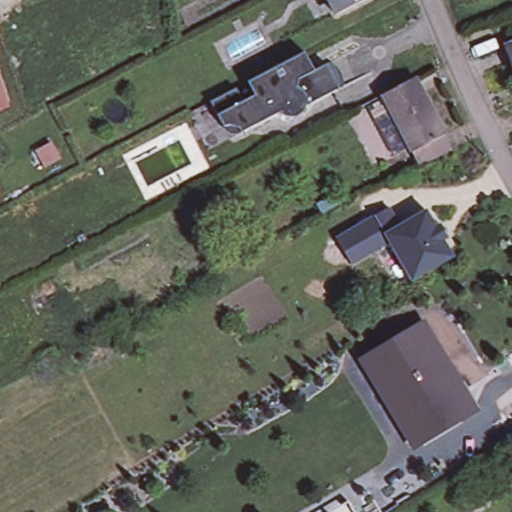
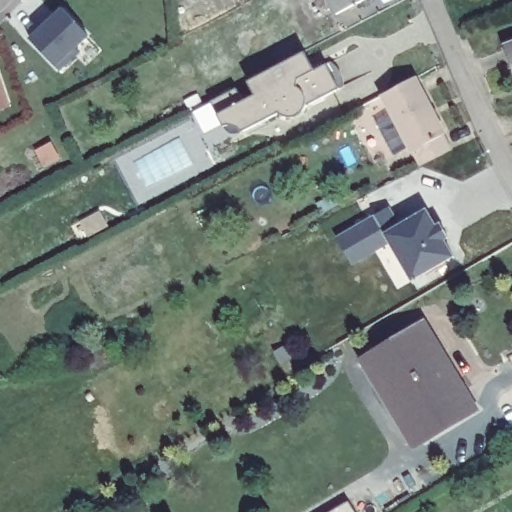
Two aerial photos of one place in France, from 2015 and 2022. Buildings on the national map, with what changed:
unchanged [(341,7),(338,0),(355,0),(341,7)]
new [(55,66),(28,38),(62,7),(89,37),(75,49),(79,53),(59,72),(55,66)]
unchanged [(512,44),(512,54),(509,46),(512,44)]
unchanged [(304,111),(298,120),(293,122),(284,122),(275,119),(240,138),(238,135),(237,132),(233,130),(226,127),(221,130),(209,105),(235,92),(242,106),(253,100),(246,86),(289,64),(303,57),(313,74),(324,68),(334,86),(338,95),(304,111)]
unchanged [(421,161),(412,145),(381,87),(414,71),(444,127),(443,129),(451,145),(421,161)]
unchanged [(0,109),(0,78),(9,106),(0,109)]
unchanged [(376,257),(354,270),(338,242),(390,212),(401,231),(427,216),(437,232),(441,230),(449,243),(444,246),(454,262),(412,286),(398,295),(376,257)]
unchanged [(399,423),(364,364),(376,357),(424,328),(459,387),(462,386),(467,396),(477,412),(456,423),(415,447),(404,432),(399,423)]

